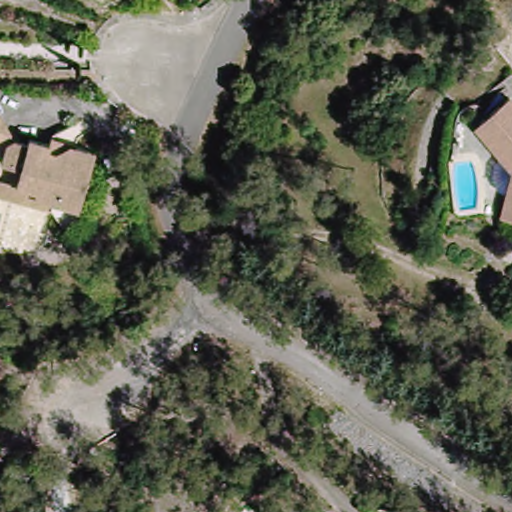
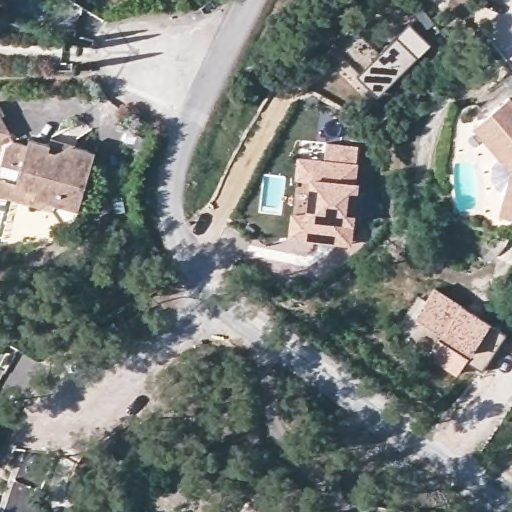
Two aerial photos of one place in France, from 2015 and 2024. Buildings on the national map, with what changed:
new [(359,31),(380,53),(397,37),(417,59),(379,95),(338,51),(359,31)]
unchanged [(505,194),(496,188),(491,177),(492,165),(498,157),(473,127),(510,96),(512,98),(512,219),(499,215),(505,194)]
unchanged [(9,134),(0,139),(0,118),(9,134)]
unchanged [(63,226),(50,207),(0,195),(0,179),(17,184),(21,167),(2,162),(6,147),(14,142),(27,145),(29,140),(50,145),(49,150),(57,152),(70,145),(94,152),(78,208),(76,219),(63,226)]
new [(325,244),(303,241),(288,240),(291,216),(306,218),(310,181),(296,180),(298,160),(313,161),(323,162),(326,145),(358,149),(353,185),(356,186),(349,240),(349,246),(325,244)]
new [(435,291),(508,337),(484,373),(468,363),(458,377),(430,358),(443,336),(417,320),(435,291)]

